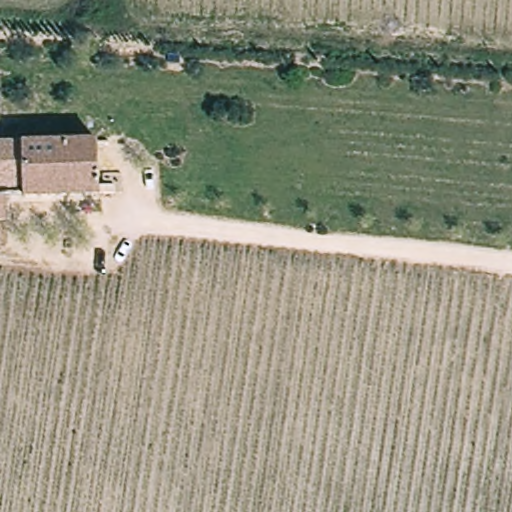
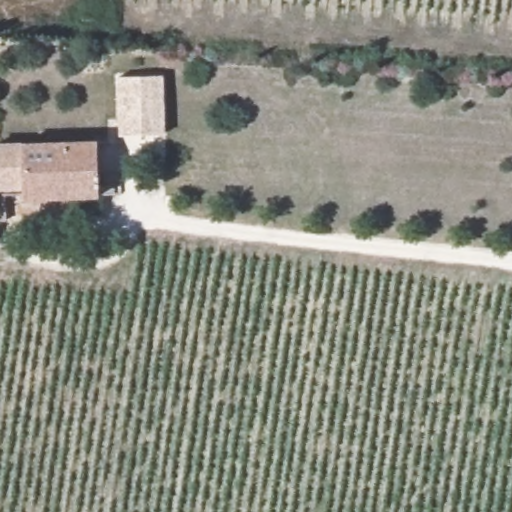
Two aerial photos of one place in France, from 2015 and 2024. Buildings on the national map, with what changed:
new [(164,74),(165,133),(120,134),(118,75),(164,74)]
unchanged [(0,138),(98,139),(98,167),(99,192),(10,191),(11,210),(12,237),(0,237),(0,138)]

